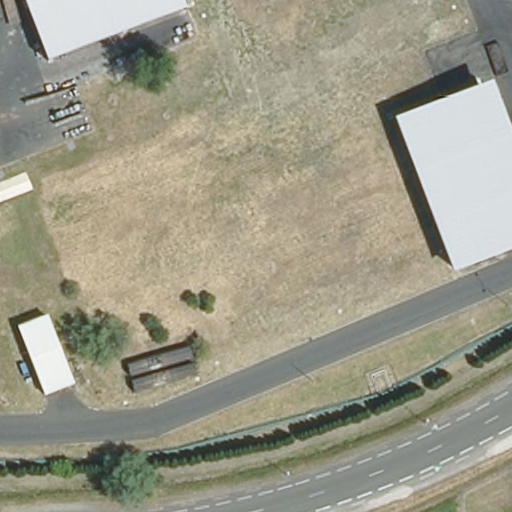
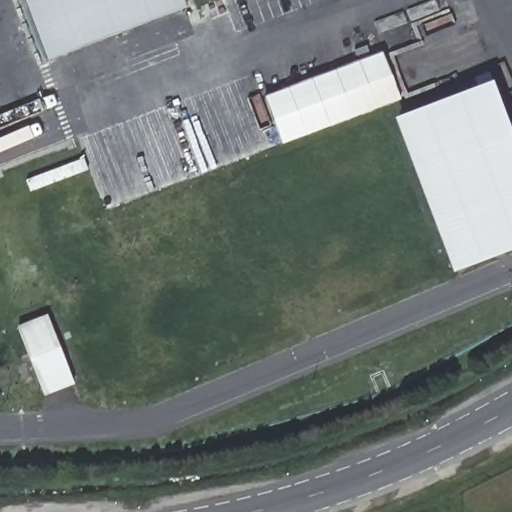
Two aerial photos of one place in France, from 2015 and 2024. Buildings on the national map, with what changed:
unchanged [(46,61),(23,0),(184,0),(187,8),(46,61)]
new [(381,53),(399,100),(281,145),(263,98),(381,53)]
unchanged [(512,107),(512,249),(462,268),(405,113),(501,78),(512,107)]
unchanged [(70,377),(41,388),(15,320),(44,309),(70,377)]

